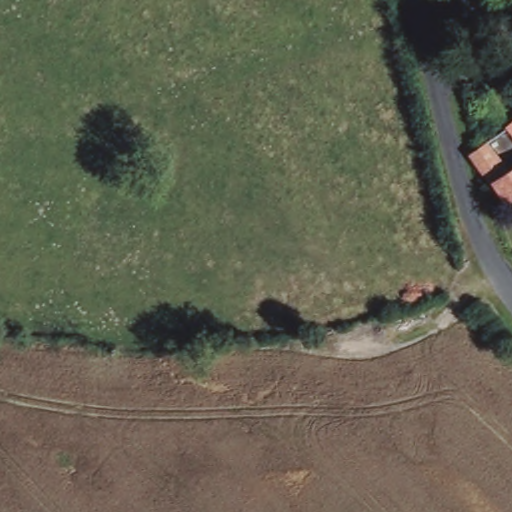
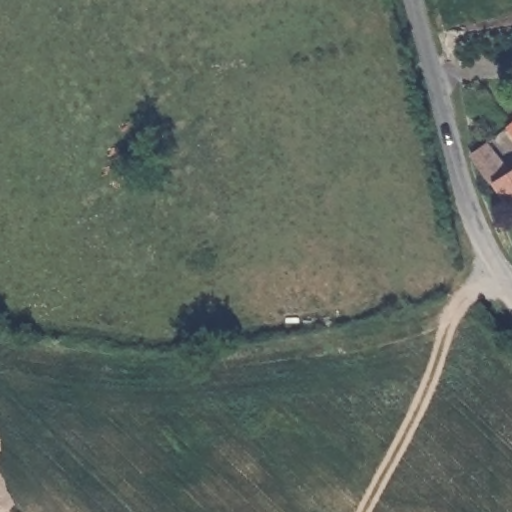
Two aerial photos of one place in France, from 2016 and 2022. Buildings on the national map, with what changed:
unchanged [(512,123),(512,146),(501,132),(512,123)]
unchanged [(465,160),(483,146),(507,179),(512,175),(512,202),(503,209),(490,189),(485,192),(469,170),(465,160)]

